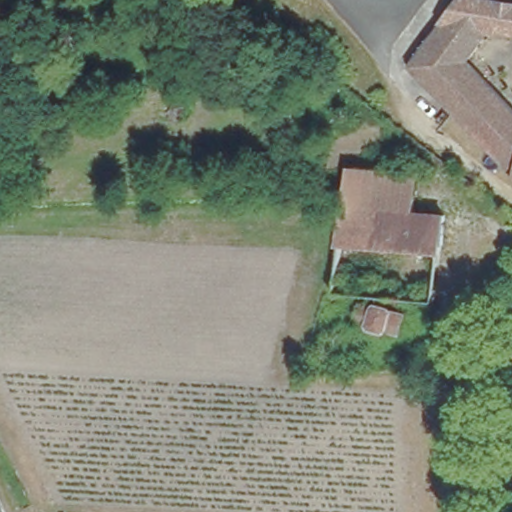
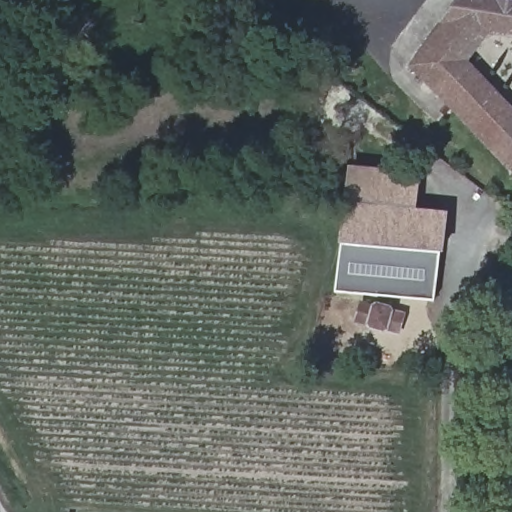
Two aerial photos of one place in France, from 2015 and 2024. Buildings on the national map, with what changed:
unchanged [(476,31),(453,61),(512,115),(512,177),(405,61),(449,0),(490,0),(512,4),(512,37),(476,31)]
unchanged [(421,175),(412,214),(441,220),(433,257),(338,236),(354,161),(421,175)]
new [(335,292),(338,236),(433,257),(434,300),(335,292)]
unchanged [(366,307),(367,302),(395,310),(394,314),(403,316),(400,335),(387,331),(386,337),(361,331),(362,324),(352,321),(357,304),(366,307)]

